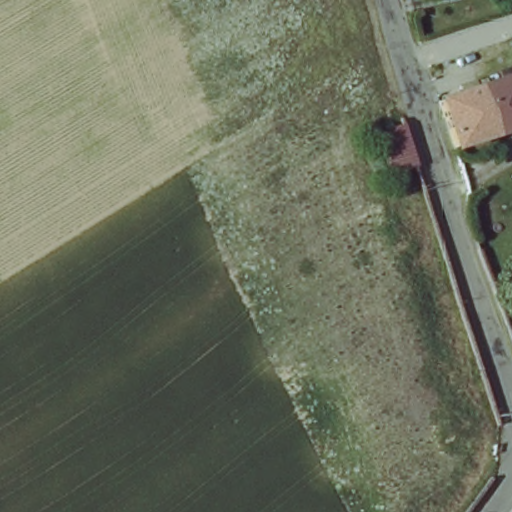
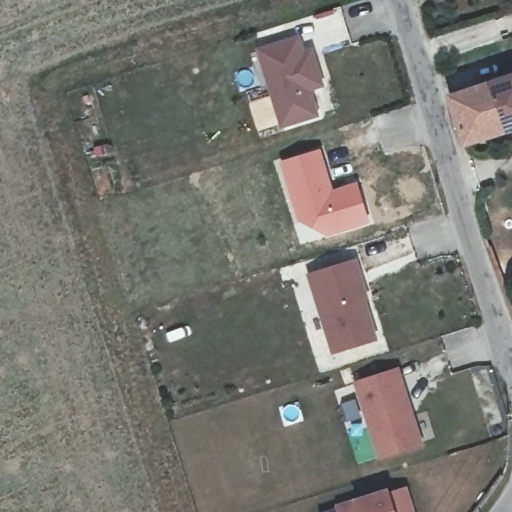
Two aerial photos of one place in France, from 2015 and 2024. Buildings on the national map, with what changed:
new [(280,129),(255,49),(300,35),(304,52),(313,48),(325,87),(311,92),(320,117),(280,129)]
unchanged [(512,74),(512,127),(508,128),(492,79),(512,74)]
unchanged [(465,140),(451,91),(492,79),(508,128),(465,140)]
new [(326,237),(297,221),(279,162),(322,149),(333,189),(357,182),(370,224),(326,237)]
new [(330,355),(307,276),(356,261),(379,342),(330,355)]
new [(423,445),(378,460),(353,383),(399,368),(423,445)]
new [(336,504),(352,500),(390,487),(390,492),(406,486),(415,512),(339,512),(336,504)]

